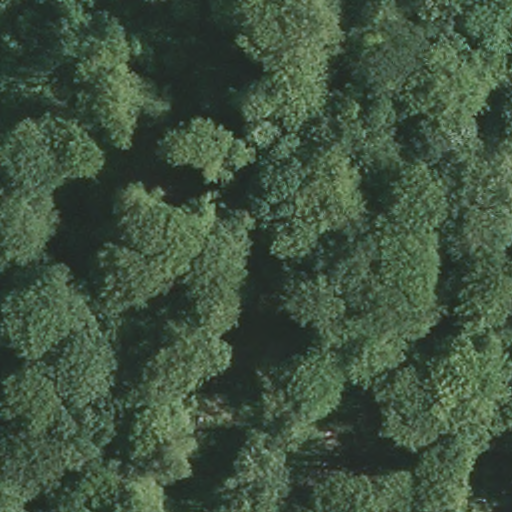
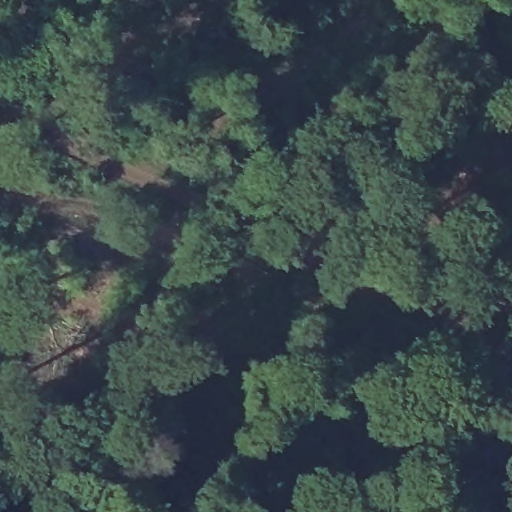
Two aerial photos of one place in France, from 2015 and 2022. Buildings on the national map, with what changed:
[]

